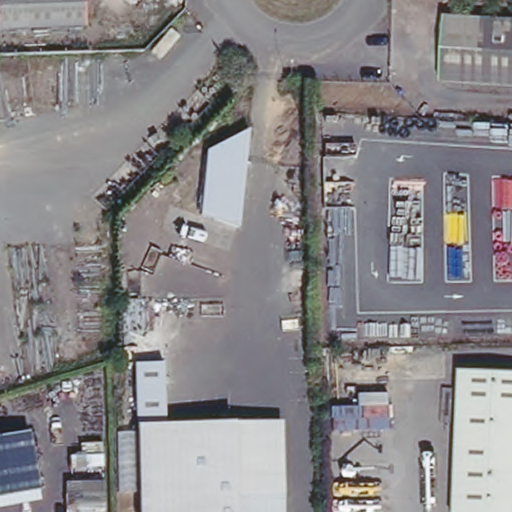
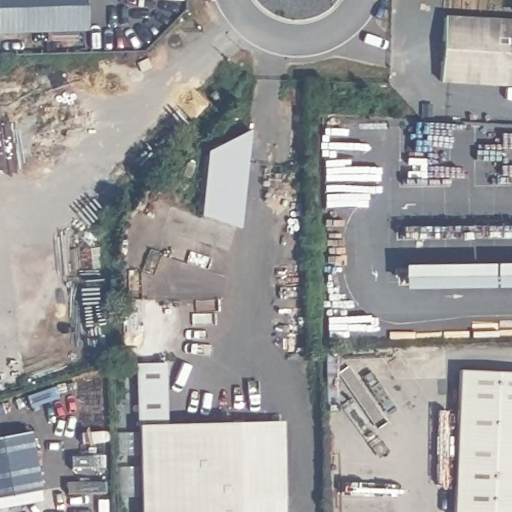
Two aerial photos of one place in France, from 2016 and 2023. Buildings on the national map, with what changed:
unchanged [(86,25),(0,28),(0,0),(84,0),(86,25)]
unchanged [(512,86),(439,81),(444,15),(512,18),(512,86)]
unchanged [(251,128),(239,234),(198,219),(206,151),(251,128)]
unchanged [(142,420),(136,364),(166,363),(167,420),(142,420)]
unchanged [(512,512),(455,512),(455,371),(512,372),(512,512)]
unchanged [(140,512),(138,427),(283,423),(285,512),(140,512)]
unchanged [(32,430),(41,489),(0,495),(0,434),(32,430)]

